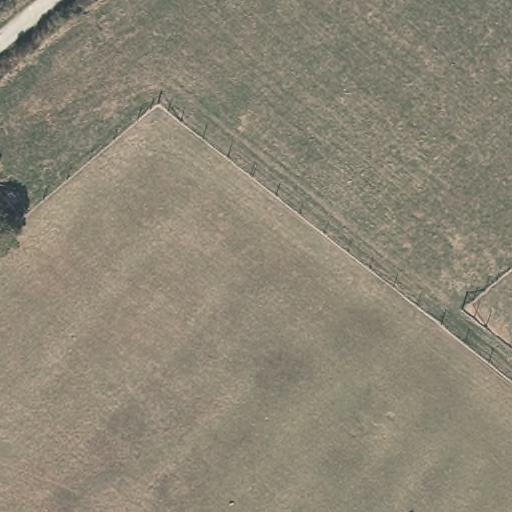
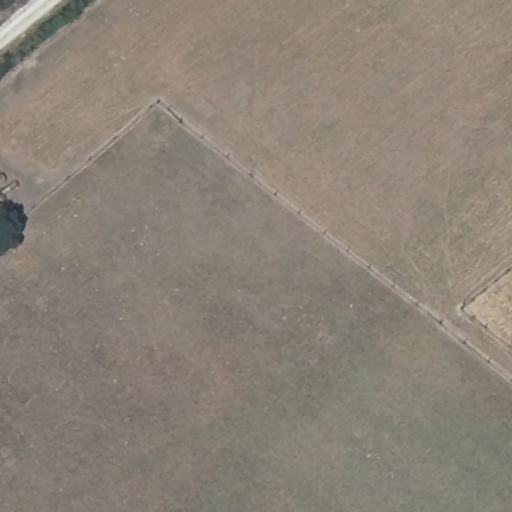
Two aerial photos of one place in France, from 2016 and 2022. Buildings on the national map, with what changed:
unchanged [(0,166),(0,159),(4,163),(0,166)]

